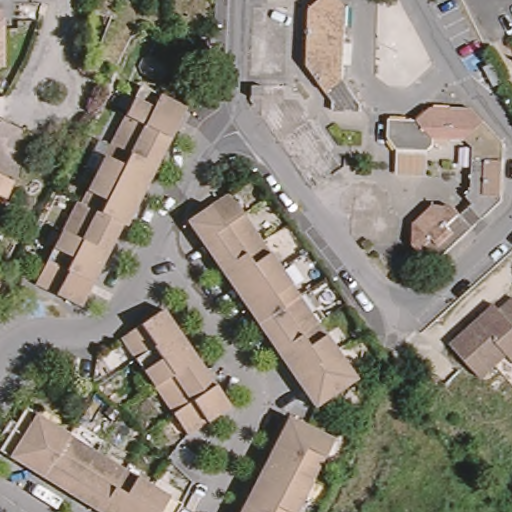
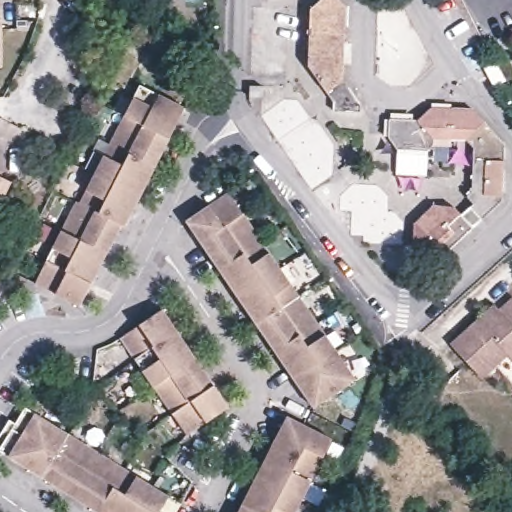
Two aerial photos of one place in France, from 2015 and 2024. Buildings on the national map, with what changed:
unchanged [(343,79),(359,104),(359,109),(334,108),(334,104),(308,65),(310,7),(318,0),(340,0),(346,6),(343,79)]
unchanged [(98,48),(91,47),(91,11),(110,14),(98,48)]
unchanged [(0,69),(0,31),(1,69),(0,69)]
unchanged [(260,95),(248,94),(248,85),(261,85),(260,95)]
unchanged [(185,114),(180,123),(175,120),(171,129),(176,131),(162,156),(158,154),(153,165),(158,167),(150,180),(146,178),(141,186),(146,189),(132,216),(128,215),(123,223),(128,226),(124,233),(120,231),(115,239),(110,237),(107,244),(111,247),(98,274),(94,272),(90,280),(94,283),(79,314),(65,307),(67,303),(60,300),(57,303),(32,291),(75,208),(79,210),(138,92),(185,114)]
unchanged [(421,129),(436,116),(476,119),(507,151),(505,209),(436,272),(417,254),(417,232),(438,215),(458,216),(464,222),(476,212),(471,205),(475,201),(477,157),(470,149),(437,148),(437,152),(429,159),(402,157),(393,146),(394,128),(421,129)]
unchanged [(7,197),(0,193),(0,173),(15,180),(7,197)]
unchanged [(350,386),(309,415),(301,406),(306,403),(301,395),(296,398),(280,374),(284,372),(279,364),(275,367),(261,348),(266,346),(260,337),(256,339),(246,324),(250,321),(244,313),(241,316),(223,291),(227,289),(223,281),(219,284),(208,269),(212,267),(208,259),(203,263),(181,228),(223,199),(350,386)]
unchanged [(493,302),(499,308),(512,295),(512,359),(506,352),(480,376),(449,342),(479,315),(493,302)]
unchanged [(176,340),(171,343),(177,351),(181,348),(198,372),(193,375),(199,384),(203,381),(223,409),(210,418),(208,414),(200,419),(202,423),(181,438),(113,340),(135,326),(138,330),(146,325),(143,321),(156,312),(176,340)]
unchanged [(85,377),(71,375),(75,356),(88,358),(85,377)]
unchanged [(83,511),(85,508),(78,503),(76,506),(51,492),(53,488),(45,483),(43,487),(21,473),(23,470),(15,464),(13,468),(0,460),(0,440),(18,411),(175,507),(172,512),(84,512),(83,511)]
unchanged [(298,512),(239,512),(245,499),(250,501),(255,494),(250,490),(263,464),(269,467),(272,459),(268,457),(276,440),(280,443),(285,435),(279,432),(286,419),(333,442),(298,512)]
unchanged [(188,467),(175,456),(185,445),(198,456),(188,467)]

